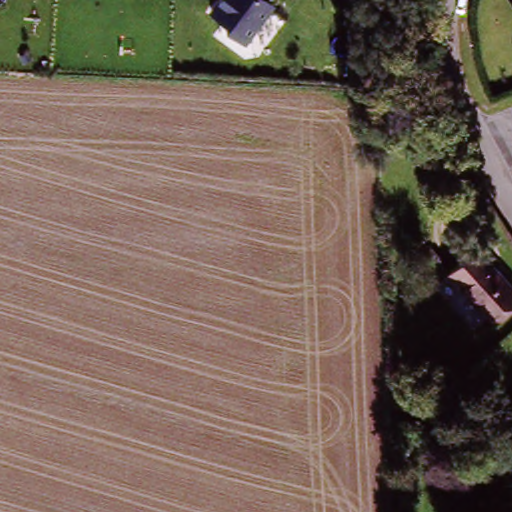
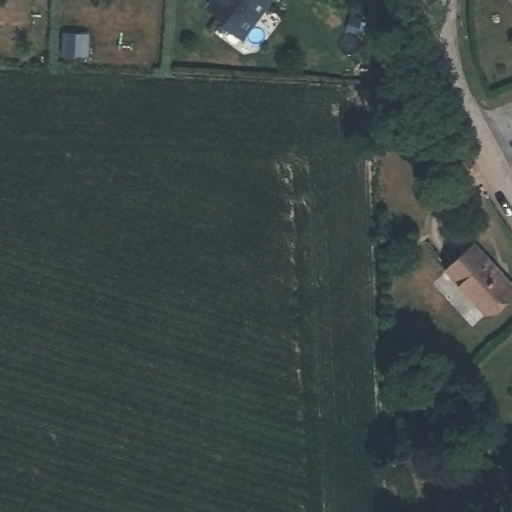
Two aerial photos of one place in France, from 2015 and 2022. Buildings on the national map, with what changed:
unchanged [(276,0),(276,1),(249,35),(216,1),(218,0),(276,0)]
unchanged [(512,291),(512,301),(488,321),(454,280),(484,256),(512,291)]

